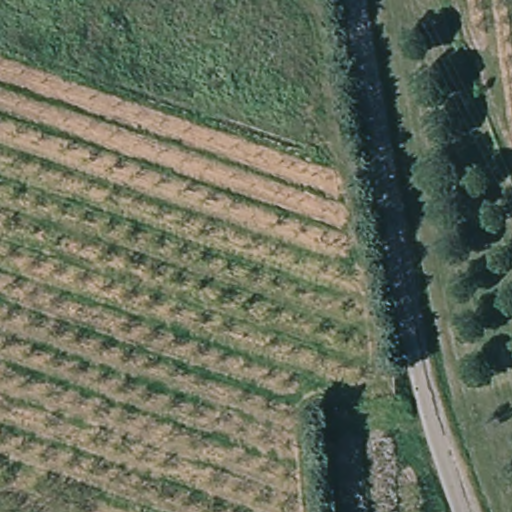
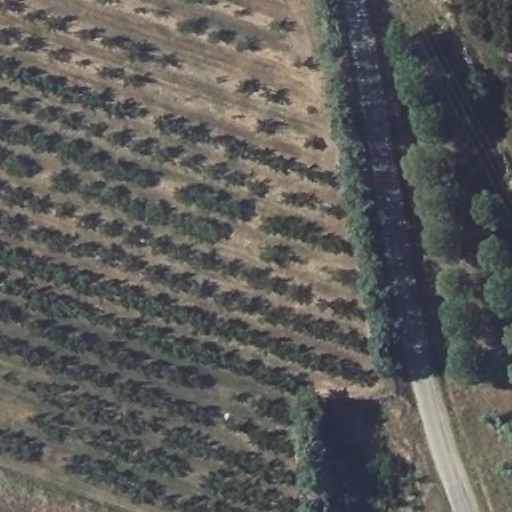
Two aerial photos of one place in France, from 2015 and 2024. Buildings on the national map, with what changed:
[]

